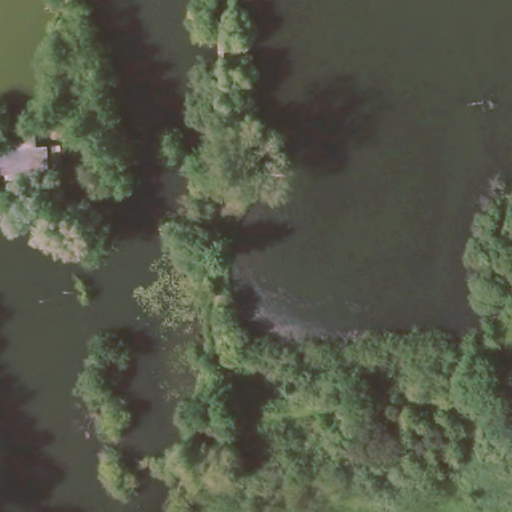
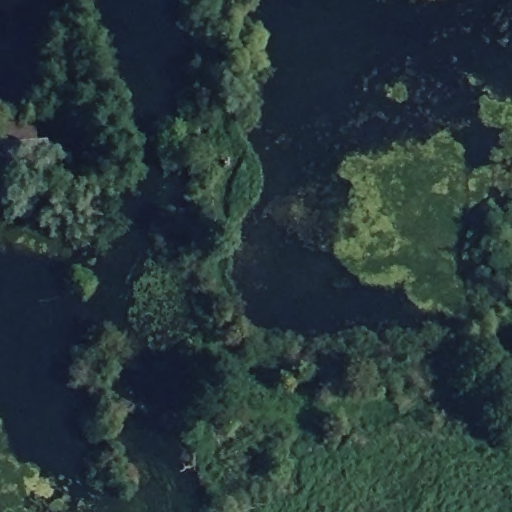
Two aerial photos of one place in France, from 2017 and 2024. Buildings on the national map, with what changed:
unchanged [(6,127),(38,126),(38,144),(51,144),(65,145),(65,170),(52,169),(0,172),(0,148),(7,148),(6,127)]

